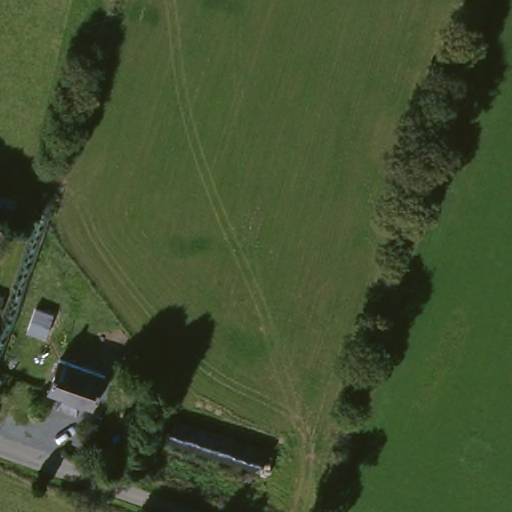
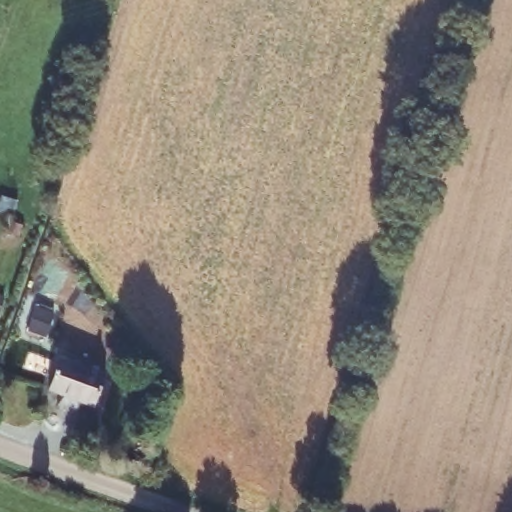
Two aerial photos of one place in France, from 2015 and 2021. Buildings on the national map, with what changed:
unchanged [(103,378),(93,411),(47,398),(56,364),(103,378)]

